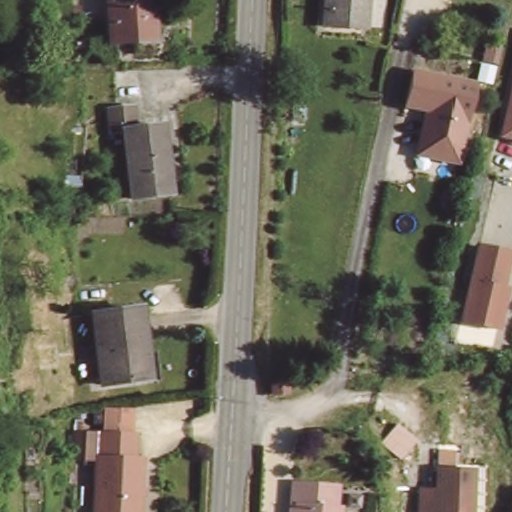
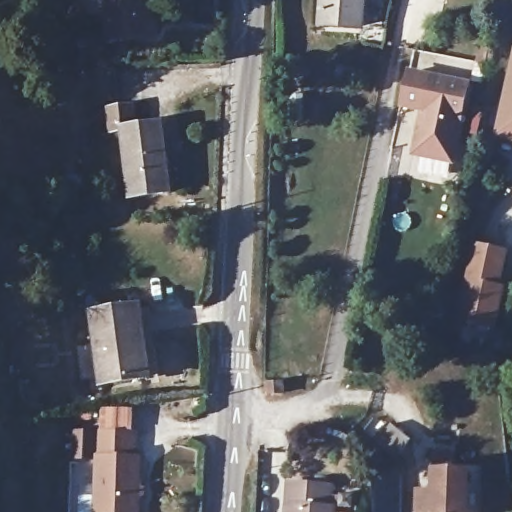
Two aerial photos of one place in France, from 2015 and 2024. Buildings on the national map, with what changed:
unchanged [(158,39),(115,39),(115,0),(157,0),(158,39)]
unchanged [(369,34),(328,31),(330,0),(370,0),(369,34)]
unchanged [(494,138),(512,58),(512,143),(494,138)]
unchanged [(411,158),(420,114),(400,109),(408,68),(474,81),(457,166),(411,158)]
unchanged [(119,133),(107,134),(104,100),(135,101),(139,122),(170,117),(177,186),(131,195),(119,133)]
unchanged [(455,319),(467,241),(511,249),(499,323),(455,319)]
unchanged [(95,306),(140,301),(149,372),(106,379),(95,306)]
unchanged [(282,398),(269,400),(267,387),(280,386),(282,398)]
unchanged [(135,512),(91,512),(91,452),(66,452),(65,430),(91,430),(127,430),(128,454),(133,454),(135,512)]
unchanged [(434,487),(434,467),(467,468),(466,512),(419,512),(419,487),(434,487)]
unchanged [(291,485),(333,488),(332,511),(337,511),(337,512),(286,512),(288,502),(291,485)]

